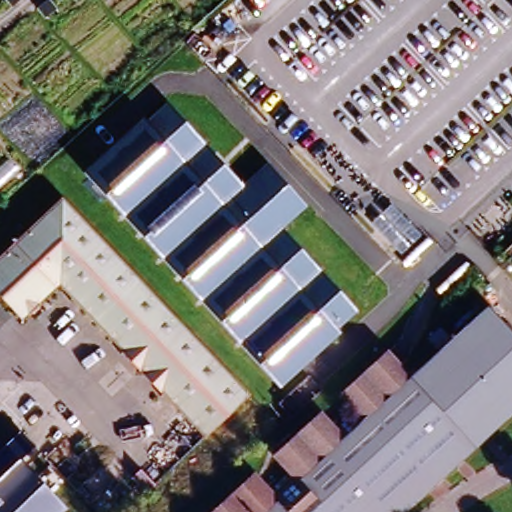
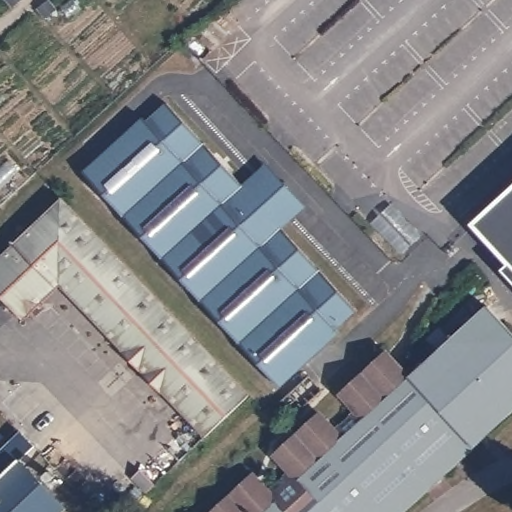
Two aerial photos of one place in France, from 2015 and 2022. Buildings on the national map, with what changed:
unchanged [(145,126),(167,108),(240,189),(265,169),(305,212),(285,236),(359,316),(340,336),(281,392),(85,177),(145,126)]
new [(504,271),(509,266),(472,223),(512,187),(512,280),(504,271)]
unchanged [(57,287),(49,289),(40,297),(25,314),(0,288),(0,255),(60,199),(245,392),(201,436),(57,287)]
unchanged [(438,353),(427,341),(440,329),(450,340),(487,308),(512,335),(512,413),(403,512),(210,512),(252,474),(267,491),(289,472),(274,454),(287,442),(319,412),(334,430),(355,410),(340,393),(385,351),(410,378),(438,353)]
unchanged [(37,453),(24,467),(67,510),(64,512),(0,512),(0,454),(21,437),(37,453)]
unchanged [(138,468),(152,483),(143,492),(134,482),(129,477),(138,468)]

